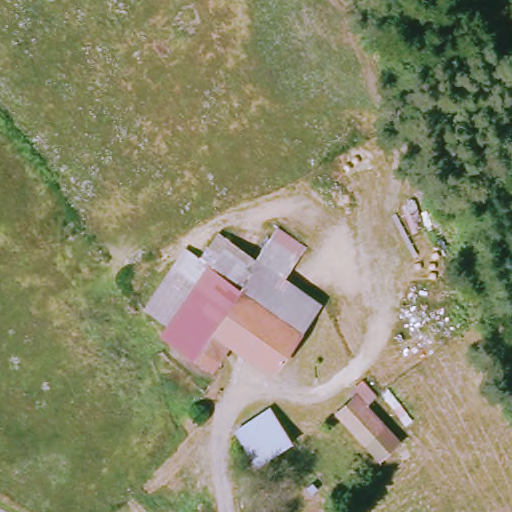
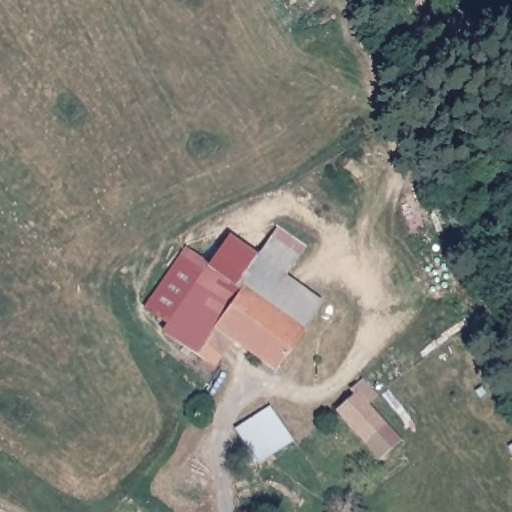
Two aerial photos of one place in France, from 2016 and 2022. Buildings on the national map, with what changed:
unchanged [(230,345),(216,372),(172,340),(176,332),(153,313),(181,270),(188,275),(213,234),(256,257),(267,242),(269,240),(294,260),(288,271),(284,277),(300,288),(319,302),(314,308),(271,373),(230,345)]
unchanged [(330,413),(347,392),(359,380),(374,396),(364,405),(398,442),(376,463),(330,413)]
unchanged [(265,407),(288,437),(257,461),(237,432),(265,407)]

